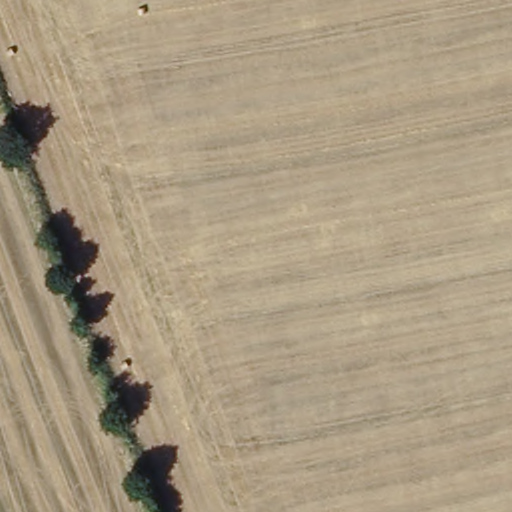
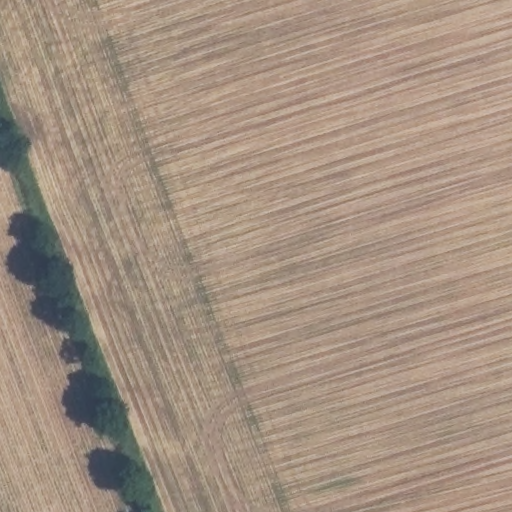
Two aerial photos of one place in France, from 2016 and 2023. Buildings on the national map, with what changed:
[]

